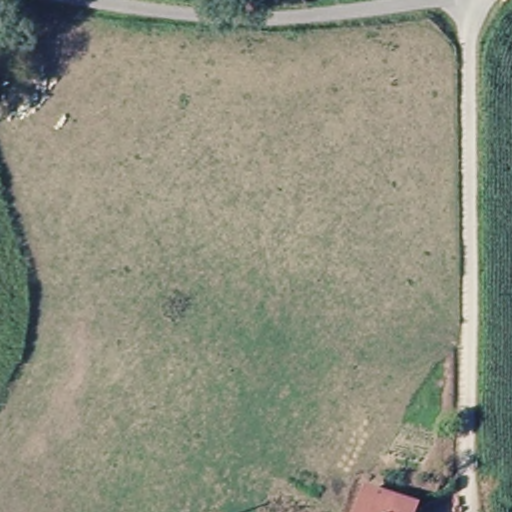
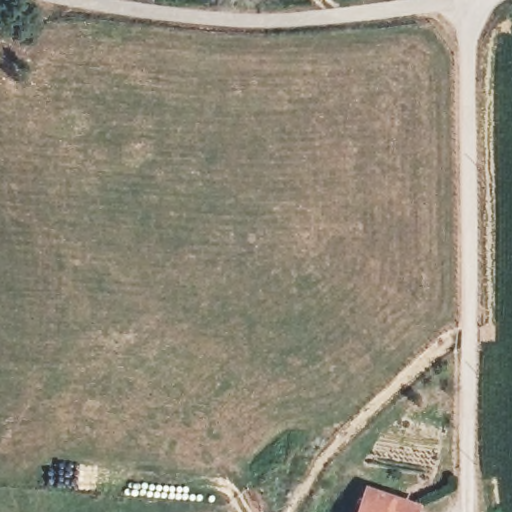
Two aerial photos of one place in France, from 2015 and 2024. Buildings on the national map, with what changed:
unchanged [(367,488),(399,500),(413,505),(411,512),(358,512),(367,488)]

